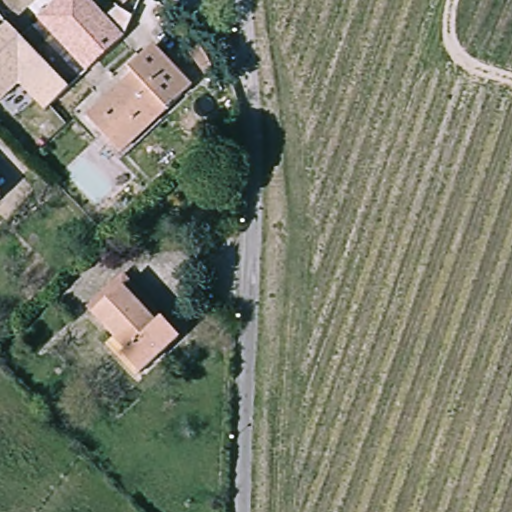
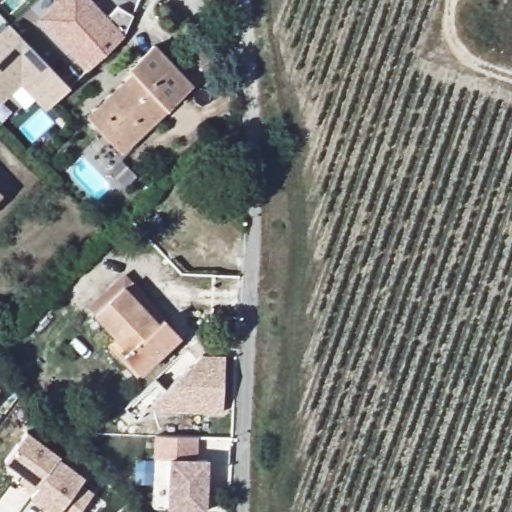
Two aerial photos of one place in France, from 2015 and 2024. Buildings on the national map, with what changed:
unchanged [(37,20),(58,0),(91,0),(107,17),(118,7),(133,16),(125,36),(87,72),(37,20)]
unchanged [(45,111),(22,87),(18,87),(1,102),(0,101),(0,31),(7,24),(70,88),(45,111)]
unchanged [(92,123),(134,85),(128,78),(155,53),(192,94),(123,157),(92,123)]
unchanged [(0,198),(0,193),(2,196),(0,198)]
unchanged [(164,323),(181,340),(141,379),(123,362),(130,354),(94,316),(123,290),(158,328),(164,323)]
new [(190,368),(202,368),(202,357),(225,358),(222,413),(147,410),(165,391),(190,368)]
new [(38,487),(33,493),(20,483),(23,477),(3,462),(26,431),(60,456),(59,459),(38,487)]
new [(196,437),(196,457),(155,456),(155,437),(196,437)]
new [(167,512),(170,458),(208,458),(206,512),(167,512)]
new [(84,478),(80,484),(93,494),(80,512),(52,512),(31,496),(59,459),(84,478)]

